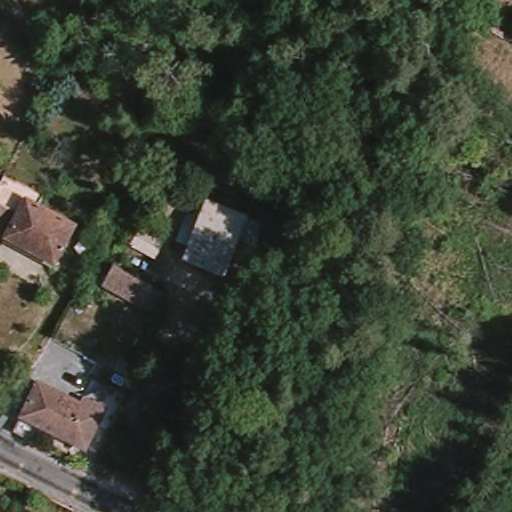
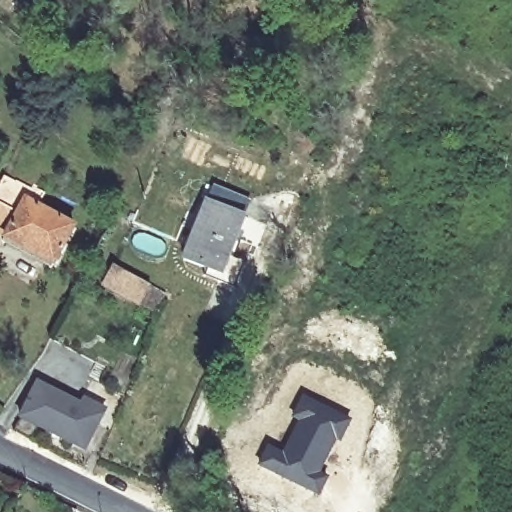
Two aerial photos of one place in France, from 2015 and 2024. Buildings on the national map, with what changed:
unchanged [(36,210),(76,231),(55,270),(6,244),(19,217),(0,207),(0,189),(4,182),(40,201),(36,210)]
unchanged [(216,285),(180,270),(202,214),(205,215),(212,197),(244,210),(237,228),(239,229),(216,285)]
unchanged [(159,221),(154,232),(166,239),(156,259),(125,244),(141,212),(159,221)]
unchanged [(166,294),(155,315),(104,287),(114,266),(166,294)]
unchanged [(86,448),(21,416),(38,383),(82,405),(86,400),(105,408),(86,448)]
new [(268,443),(282,449),(296,420),(291,417),(302,393),(352,418),(342,440),(339,438),(321,472),(329,476),(318,496),(257,465),(268,443)]

